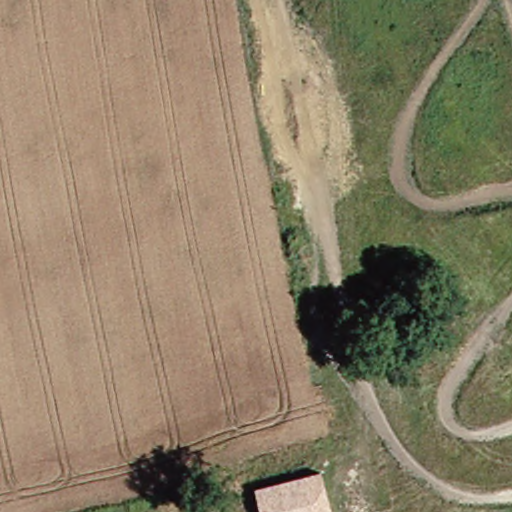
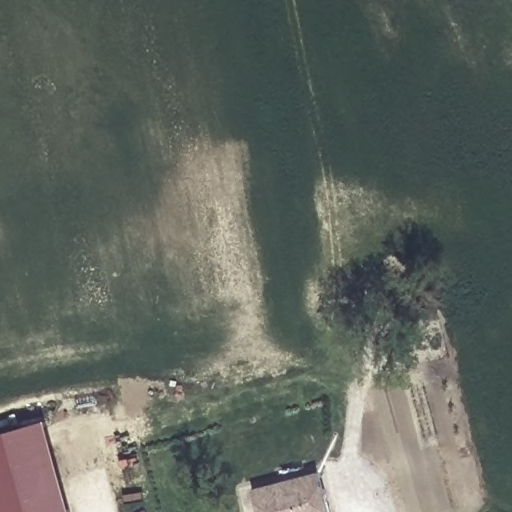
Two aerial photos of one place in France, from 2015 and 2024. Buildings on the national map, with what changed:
new [(71,512),(0,512),(0,433),(44,422),(71,512)]
unchanged [(333,512),(261,512),(254,490),(320,471),(333,512)]

